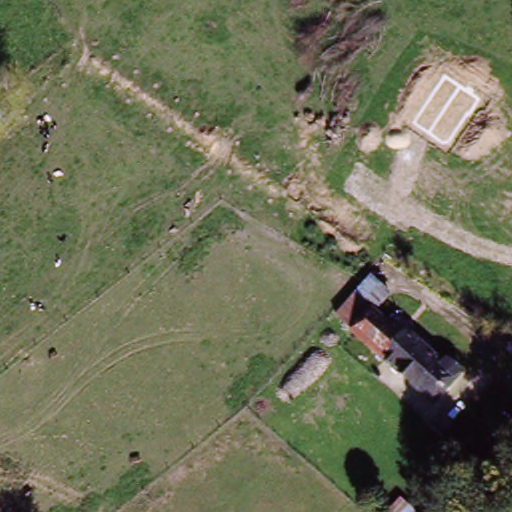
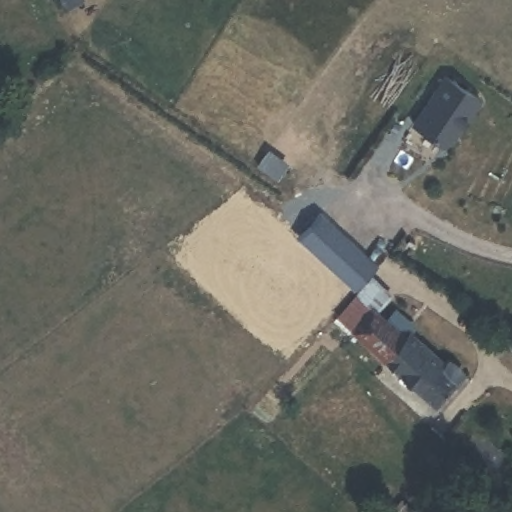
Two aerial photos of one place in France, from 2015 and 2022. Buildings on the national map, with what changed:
new [(446,76),(481,99),(471,115),(470,114),(450,146),(415,124),(446,76)]
new [(305,239),(324,217),(380,267),(358,288),(305,239)]
unchanged [(400,339),(406,333),(442,364),(446,360),(459,372),(430,404),(348,329),(368,309),(400,339)]

